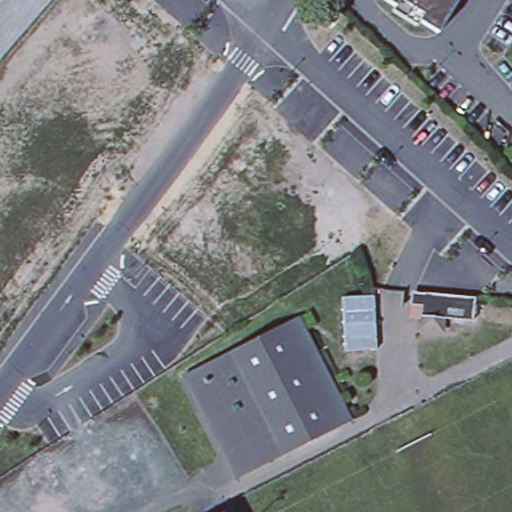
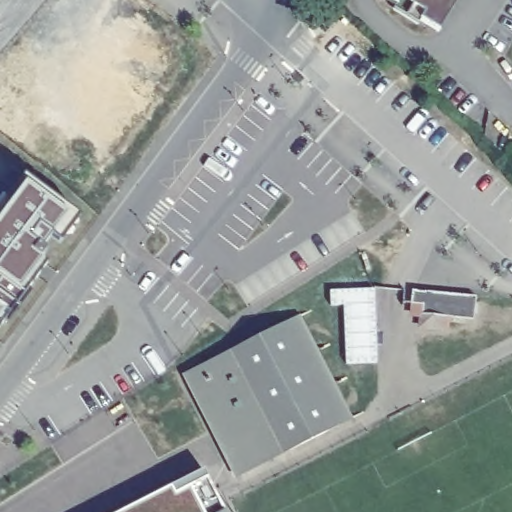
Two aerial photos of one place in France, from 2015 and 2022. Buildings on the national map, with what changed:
unchanged [(438,30),(387,0),(458,0),(438,30)]
new [(60,241),(52,234),(42,248),(45,252),(40,259),(47,264),(0,328),(0,200),(0,199),(4,201),(23,175),(78,217),(60,241)]
unchanged [(425,302),(415,300),(417,288),(480,299),(476,320),(447,316),(444,328),(422,324),(425,312),(425,302)]
unchanged [(301,318),(353,422),(245,476),(193,372),(301,318)]
new [(228,512),(119,512),(205,468),(228,512)]

